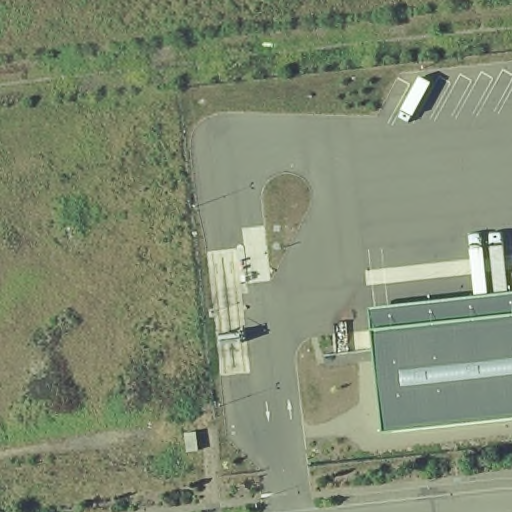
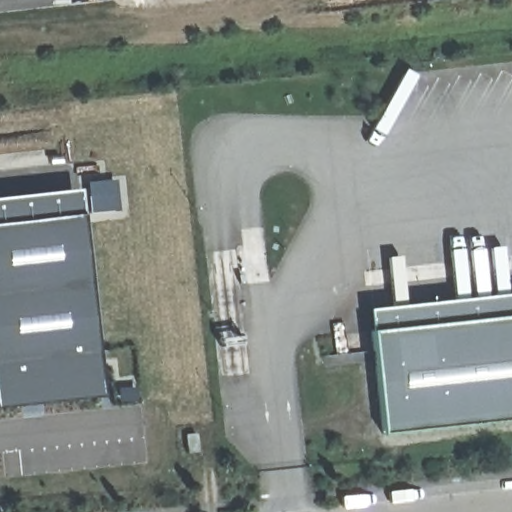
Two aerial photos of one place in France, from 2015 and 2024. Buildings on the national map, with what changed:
new [(0,410),(0,199),(83,190),(109,398),(0,410)]
unchanged [(371,309),(512,294),(512,420),(384,433),(373,332),(371,309)]

